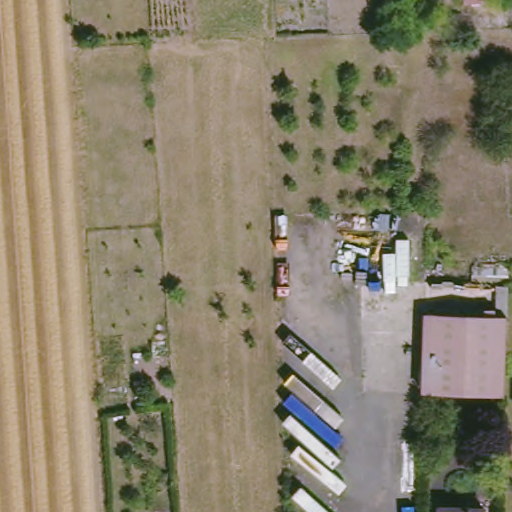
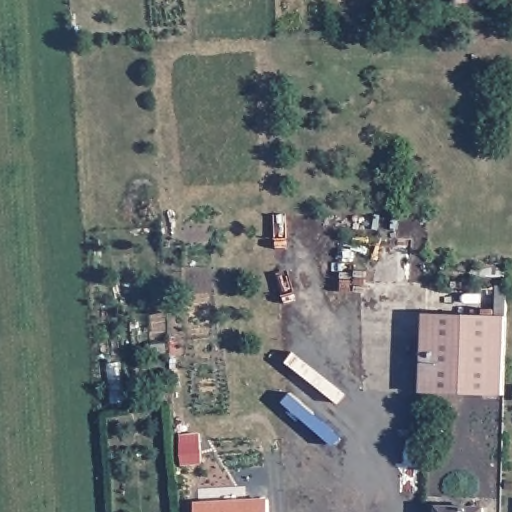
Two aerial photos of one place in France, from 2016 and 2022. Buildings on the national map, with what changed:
unchanged [(495,0),(496,2),(450,2),(450,0),(495,0)]
unchanged [(426,390),(427,316),(509,317),(507,391),(426,390)]
new [(195,439),(196,458),(177,459),(176,440),(195,439)]
new [(192,500),(265,496),(265,512),(192,512),(192,500)]
unchanged [(445,503),(484,504),(484,512),(444,512),(445,503)]

